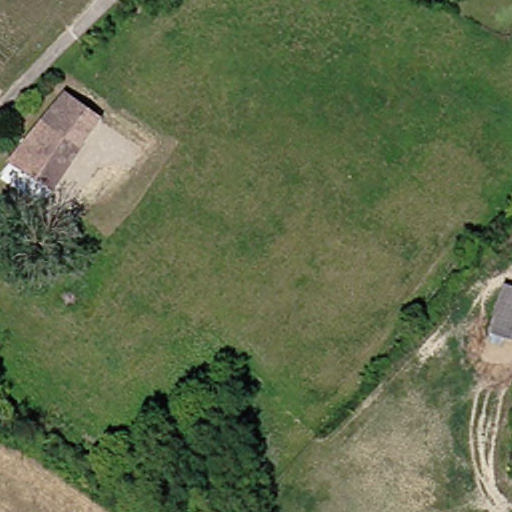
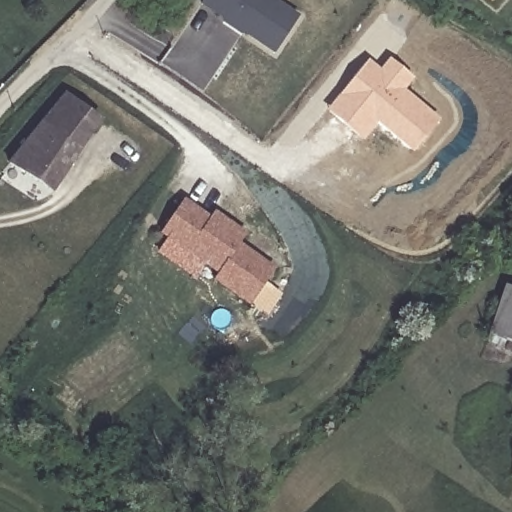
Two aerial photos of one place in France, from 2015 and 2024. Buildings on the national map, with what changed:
new [(277,0),(302,17),(277,52),(205,1),(205,0),(277,0)]
new [(379,124),(364,141),(327,111),(368,61),(380,71),(389,60),(413,79),(405,90),(441,120),(413,153),(379,124)]
unchanged [(104,113),(57,184),(13,158),(68,90),(104,113)]
new [(212,219),(216,212),(225,218),(249,235),(242,245),(278,270),(254,304),(217,279),(221,273),(164,233),(186,201),(212,219)]
unchanged [(510,284),(512,285),(512,339),(496,335),(510,284)]

